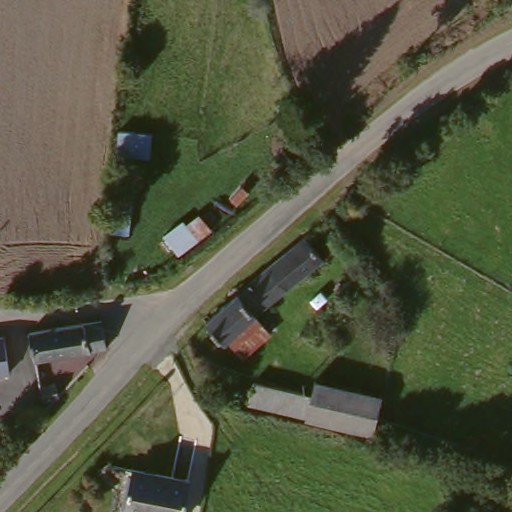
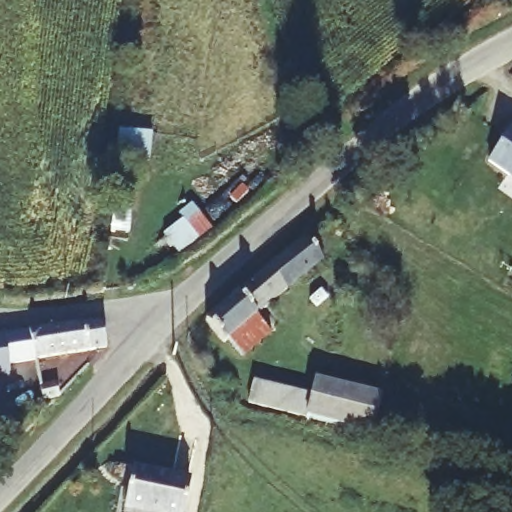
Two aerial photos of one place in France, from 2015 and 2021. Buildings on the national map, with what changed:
new [(512,128),(512,179),(488,162),(512,128)]
unchanged [(151,132),(150,155),(113,155),(114,130),(151,132)]
unchanged [(210,321),(302,235),(320,254),(321,255),(268,305),(228,340),(210,321)]
unchanged [(100,323),(105,349),(32,362),(28,337),(100,323)]
unchanged [(3,336),(8,372),(0,374),(0,336),(3,336)]
unchanged [(50,383),(34,385),(32,373),(49,371),(50,383)]
unchanged [(373,434),(303,418),(312,393),(313,391),(320,373),(383,393),(373,434)]
unchanged [(303,418),(245,405),(252,377),(312,393),(303,418)]
unchanged [(183,512),(128,512),(124,511),(136,467),(190,480),(183,512)]

